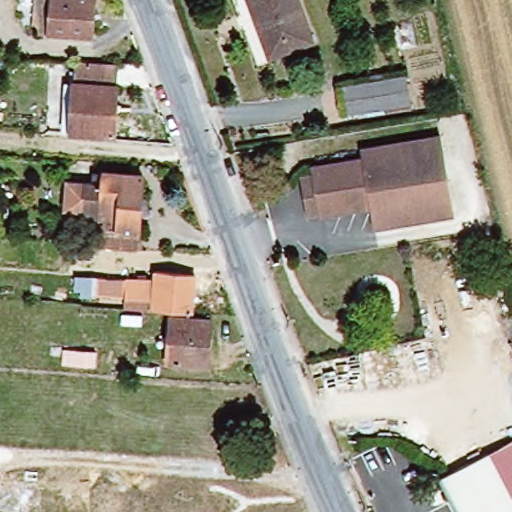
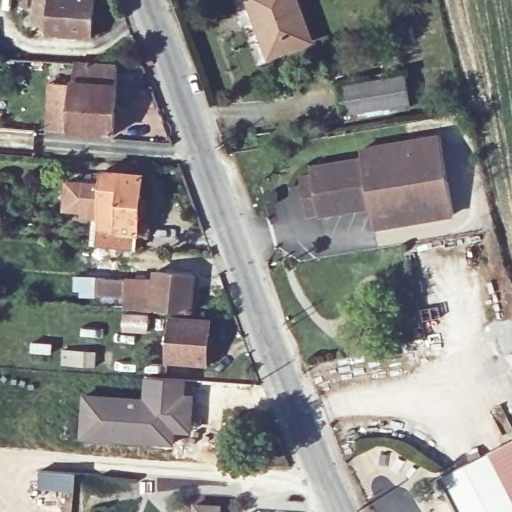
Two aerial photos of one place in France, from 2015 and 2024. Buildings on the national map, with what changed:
unchanged [(47,36),(48,19),(45,19),(45,0),(99,0),(95,39),(47,36)]
unchanged [(269,57),(248,0),(297,0),(312,43),(269,57)]
unchanged [(64,136),(71,62),(116,65),(110,140),(64,136)]
unchanged [(408,105),(338,114),(334,87),(404,77),(408,105)]
unchanged [(297,181),(317,176),(366,168),(363,157),(445,142),(458,214),(380,230),(377,214),(324,223),(324,220),(304,224),(297,181)]
unchanged [(136,247),(96,243),(99,210),(66,207),(69,179),(101,182),(102,171),(143,175),(136,247)]
unchanged [(126,298),(85,296),(86,273),(109,275),(109,280),(155,282),(156,273),(195,278),(192,314),(125,309),(126,298)]
unchanged [(212,322),(208,366),(167,363),(171,318),(212,322)]
new [(83,393),(143,396),(145,376),(188,379),(187,392),(196,393),(192,436),(176,434),(173,446),(79,439),(83,393)]
unchanged [(441,478),(512,437),(512,512),(460,512),(441,478)]
new [(40,471),(76,473),(75,490),(39,488),(40,471)]
new [(195,505),(221,507),(220,512),(195,512),(195,505)]

